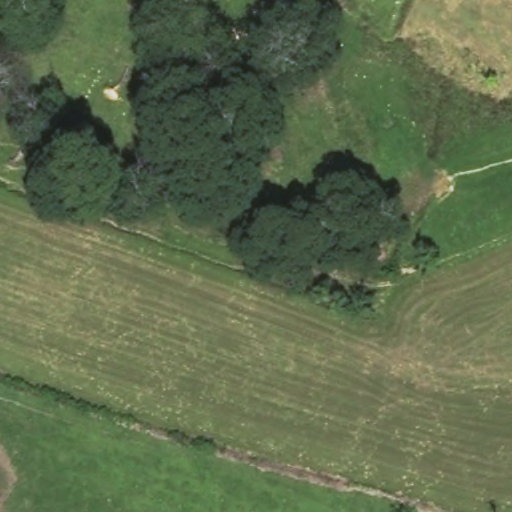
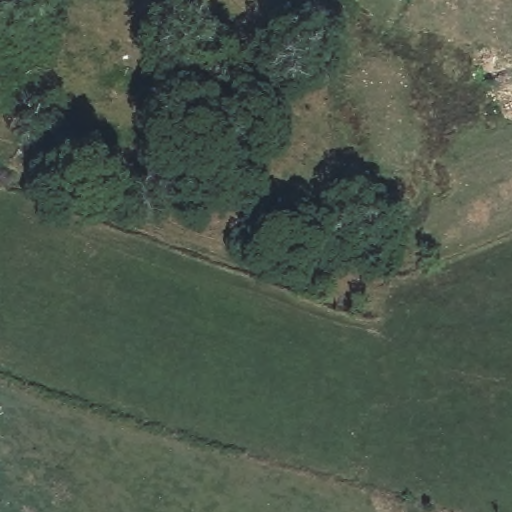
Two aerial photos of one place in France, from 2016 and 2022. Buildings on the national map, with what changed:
[]

